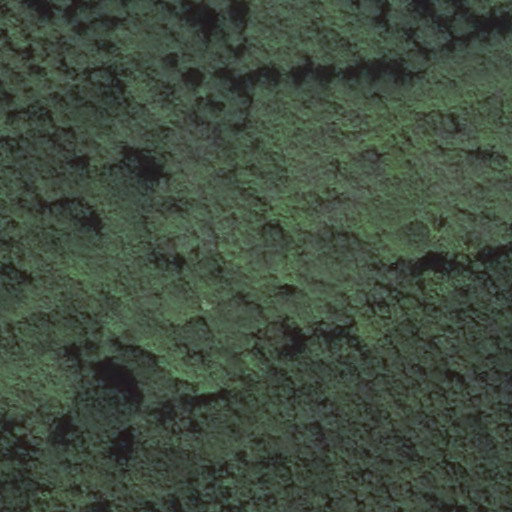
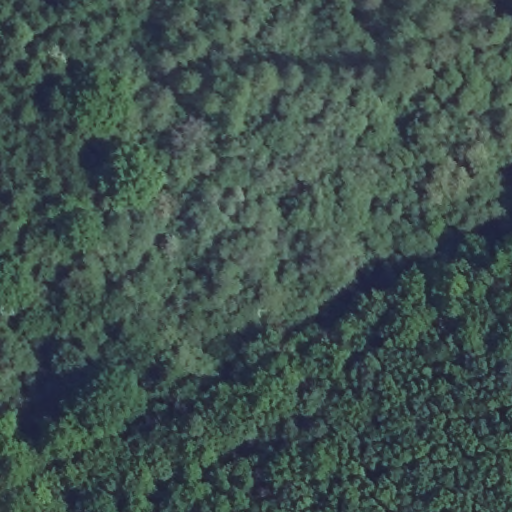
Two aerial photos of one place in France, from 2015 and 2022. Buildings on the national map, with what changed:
unchanged [(177,317),(226,372),(224,384),(204,390),(151,332),(79,253),(16,303),(0,282),(40,246),(131,182),(149,201),(105,243),(177,317)]

